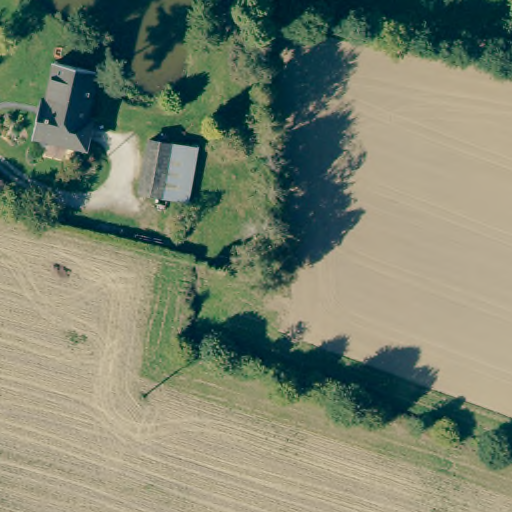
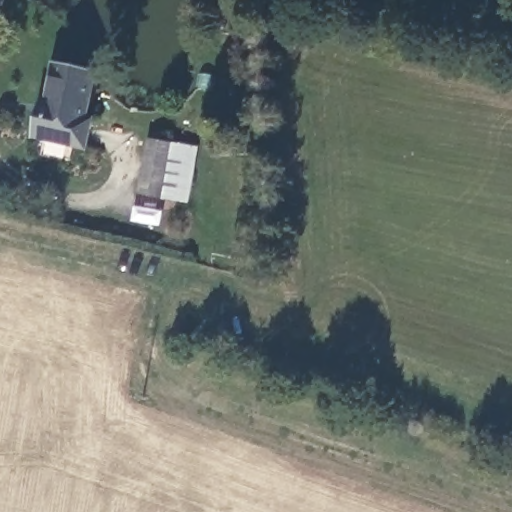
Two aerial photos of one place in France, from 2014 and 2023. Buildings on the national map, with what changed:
unchanged [(89,151),(82,149),(39,140),(32,139),(41,101),(47,102),(57,62),(99,72),(89,119),(95,120),(89,151)]
unchanged [(150,141),(190,148),(181,199),(140,192),(146,163),(150,141)]

